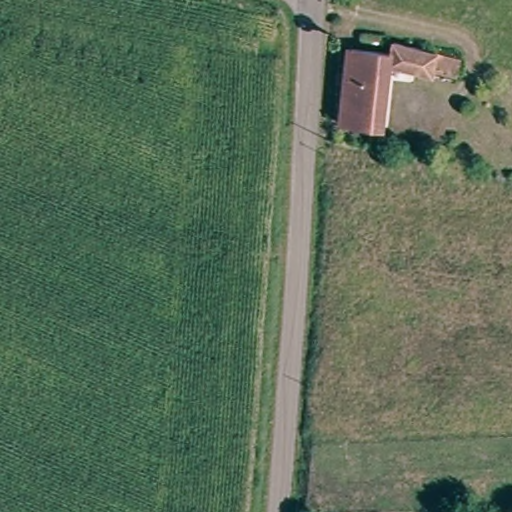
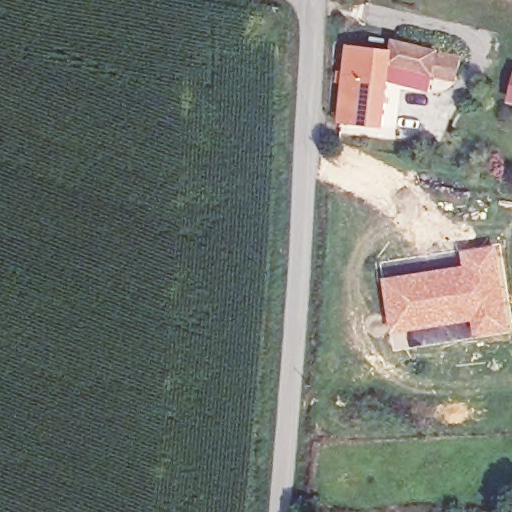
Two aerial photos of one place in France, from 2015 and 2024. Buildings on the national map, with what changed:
unchanged [(383,125),(341,120),(346,81),(338,81),(339,71),(347,72),(350,47),(391,52),(394,42),(462,49),(461,60),(460,71),(436,68),(392,63),(383,125)]
new [(512,91),(512,103),(509,102),(512,91)]
new [(460,252),(498,245),(512,323),(512,332),(469,337),(467,324),(389,334),(382,277),(462,265),(460,252)]

